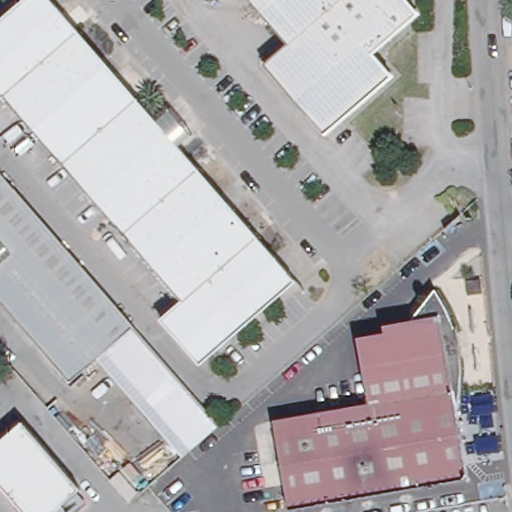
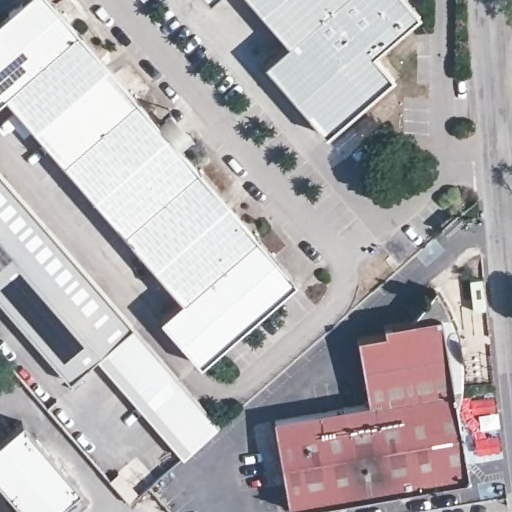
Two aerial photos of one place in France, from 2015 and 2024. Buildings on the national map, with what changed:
unchanged [(0,105),(0,21),(18,4),(24,0),(30,6),(37,0),(44,0),(52,9),(59,3),(102,53),(107,58),(104,60),(101,63),(105,68),(111,74),(117,69),(160,120),(172,110),(193,134),(182,144),(224,194),(218,199),(227,210),(234,204),(283,262),(276,268),(288,282),(275,293),(281,299),(236,338),(230,331),(220,339),(225,346),(203,364),(164,319),(184,302),(141,252),(9,97),(0,105)]
unchanged [(252,0),(406,0),(416,11),(369,51),(384,69),(377,74),(382,81),(351,108),(345,100),(337,107),(343,114),(323,130),(262,59),(285,39),(252,0)]
unchanged [(219,427),(183,459),(181,457),(93,358),(77,372),(58,372),(0,305),(0,176),(163,363),(219,427)]
unchanged [(275,418),(371,402),(359,334),(384,329),(382,320),(409,315),(435,288),(443,299),(449,309),(454,322),(459,332),(461,347),(463,362),(463,380),(460,395),(456,408),(468,477),(290,507),(275,418)]
unchanged [(83,486),(51,512),(32,512),(0,475),(0,439),(26,419),(83,486)]

